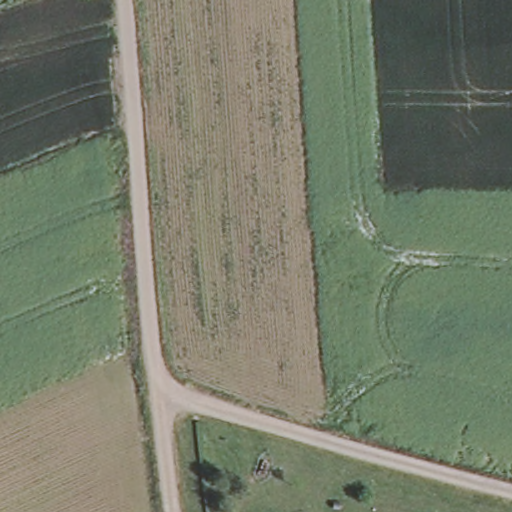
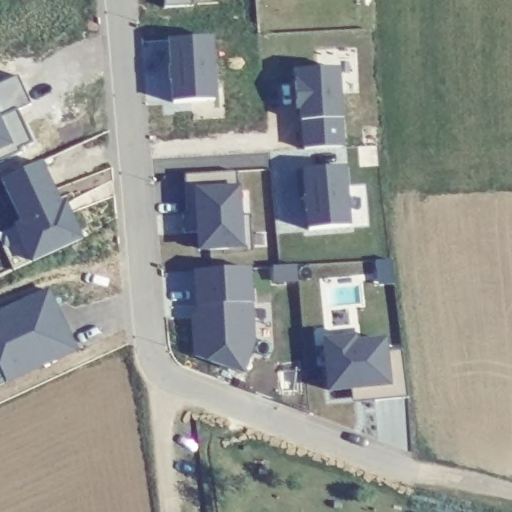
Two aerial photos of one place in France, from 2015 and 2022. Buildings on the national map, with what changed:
new [(192,5),(166,5),(166,0),(192,0),(192,5)]
new [(167,40),(213,38),(216,101),(171,103),(167,40)]
new [(341,66),(344,114),(343,113),(346,143),(302,146),(302,115),(300,116),(294,67),(341,66)]
new [(30,103),(18,110),(33,141),(0,159),(0,83),(16,75),(30,103)]
new [(0,233),(21,223),(2,179),(39,163),(59,205),(64,203),(80,239),(13,270),(0,243),(0,233)]
new [(304,199),(298,199),(296,170),(303,170),(346,167),(349,226),(306,230),(304,199)]
new [(238,172),(236,186),(241,185),(246,245),(201,245),(199,210),(189,209),(186,172),(238,172)]
new [(191,316),(203,316),(203,305),(198,305),(196,271),(249,268),(251,303),(253,342),(243,373),(195,356),(191,316)]
new [(78,349),(0,385),(0,310),(51,286),(78,349)]
new [(374,402),(374,396),(353,398),(353,387),(329,389),(328,368),(315,370),(311,326),(359,322),(359,338),(384,336),(386,352),(402,351),(408,399),(374,402)]

